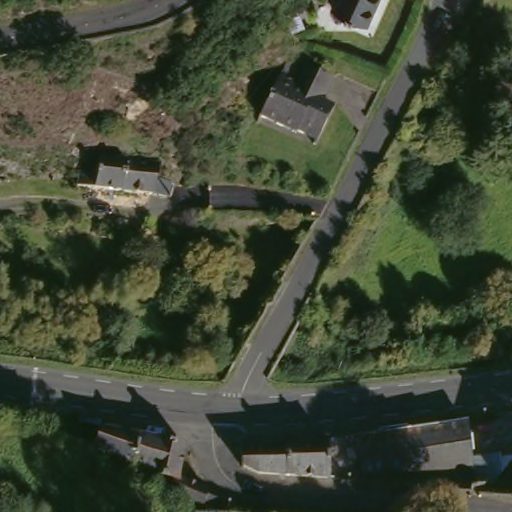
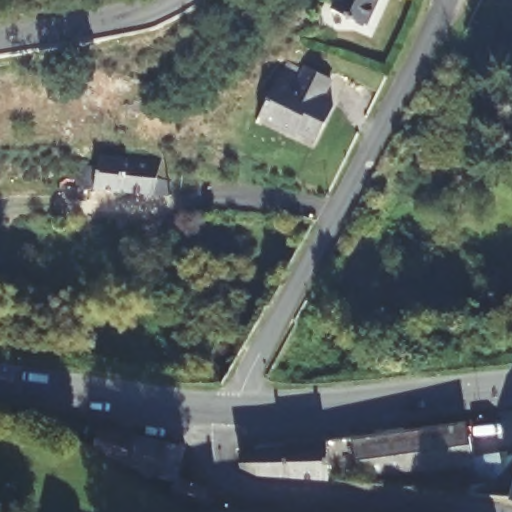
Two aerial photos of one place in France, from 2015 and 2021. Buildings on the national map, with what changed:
unchanged [(331,16),(338,0),(381,0),(368,31),(331,16)]
unchanged [(318,103),(333,110),(313,148),(291,137),(289,140),(253,122),(278,74),(298,84),(306,68),(330,80),(318,103)]
unchanged [(74,169),(90,171),(94,154),(152,163),(151,179),(165,181),(163,197),(71,186),(74,169)]
unchanged [(109,430),(175,445),(168,479),(145,474),(124,463),(122,466),(84,447),(44,432),(46,420),(109,430)]
unchanged [(254,479),(236,470),(234,456),(459,425),(468,489),(463,490),(463,496),(254,479)]
unchanged [(168,479),(197,490),(196,496),(206,500),(203,510),(163,497),(168,479)]

